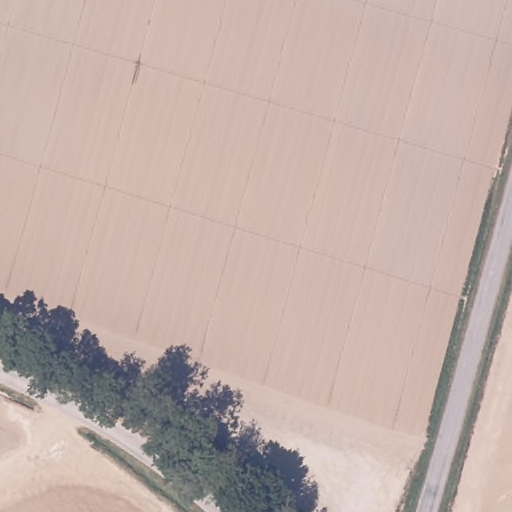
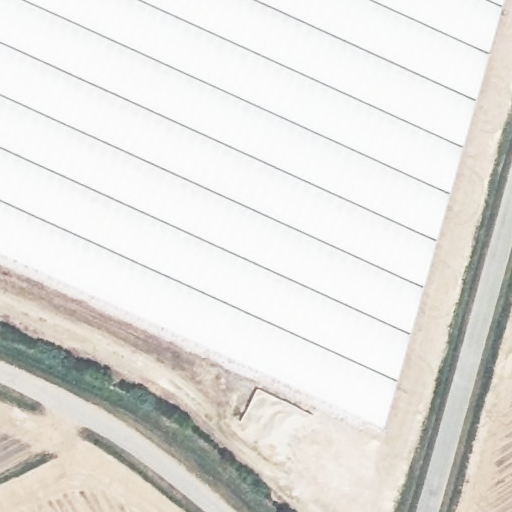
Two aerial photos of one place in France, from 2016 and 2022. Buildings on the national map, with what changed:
new [(0,253),(0,0),(503,0),(384,426),(0,253)]

